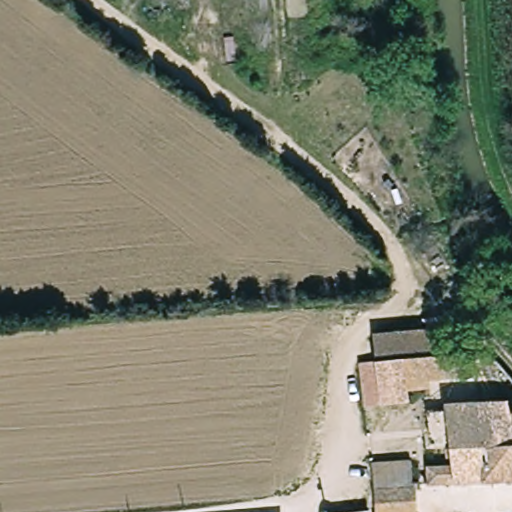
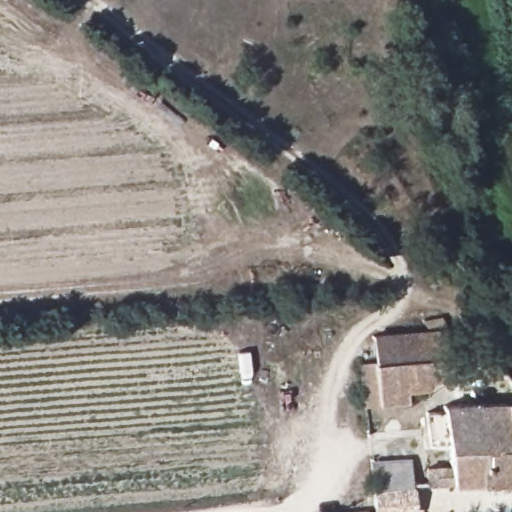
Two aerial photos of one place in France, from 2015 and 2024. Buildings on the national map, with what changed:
unchanged [(452,255),(449,246),(457,243),(460,252),(452,255)]
unchanged [(427,300),(442,318),(434,329),(417,310),(427,300)]
unchanged [(459,378),(427,382),(428,403),(365,411),(360,366),(375,364),(373,337),(434,329),(450,327),(452,354),(465,352),(481,352),(477,368),(459,373),(459,378)]
unchanged [(450,407),(512,403),(512,480),(428,486),(427,467),(455,464),(450,407)]
unchanged [(417,464),(420,512),(379,512),(375,468),(417,464)]
unchanged [(364,470),(367,479),(361,481),(357,473),(364,470)]

